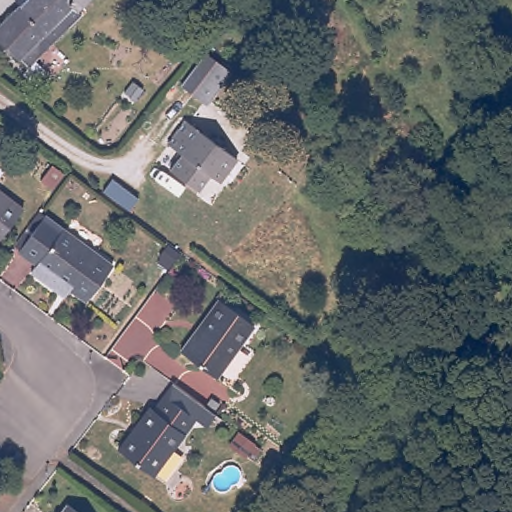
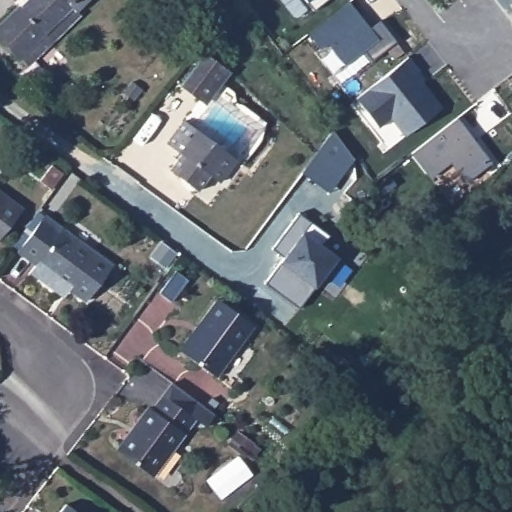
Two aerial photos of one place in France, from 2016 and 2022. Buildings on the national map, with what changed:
unchanged [(67,18),(70,22),(18,72),(0,54),(0,20),(21,0),(84,0),(67,18)]
new [(314,10),(307,2),(305,0),(326,0),(314,10)]
new [(348,3),(370,29),(380,21),(396,42),(371,63),(362,52),(344,67),(327,45),(320,50),(310,35),(348,3)]
unchanged [(201,91),(198,89),(175,73),(196,44),(218,60),(222,63),(201,91)]
new [(419,72),(414,75),(441,109),(406,137),(391,118),(378,128),(356,101),(408,59),(419,72)]
new [(492,165),(466,185),(451,163),(430,180),(411,156),(458,120),(492,165)]
unchanged [(213,179),(202,194),(173,173),(185,158),(170,146),(188,125),(239,162),(221,186),(213,179)]
unchanged [(24,209),(0,240),(0,190),(24,209)]
new [(286,255),(275,246),(303,211),(332,234),(324,244),(340,256),(300,307),(267,280),(286,255)]
unchanged [(38,265),(20,252),(46,216),(113,266),(87,302),(64,284),(58,292),(32,273),(38,265)]
unchanged [(255,327),(218,378),(182,351),(196,333),(220,300),(224,303),(255,327)]
unchanged [(209,425),(199,438),(193,434),(187,429),(143,487),(108,462),(142,418),(147,422),(158,406),(167,394),(168,396),(191,412),(203,421),(209,425)]
unchanged [(62,512),(68,505),(78,512),(62,512)]

